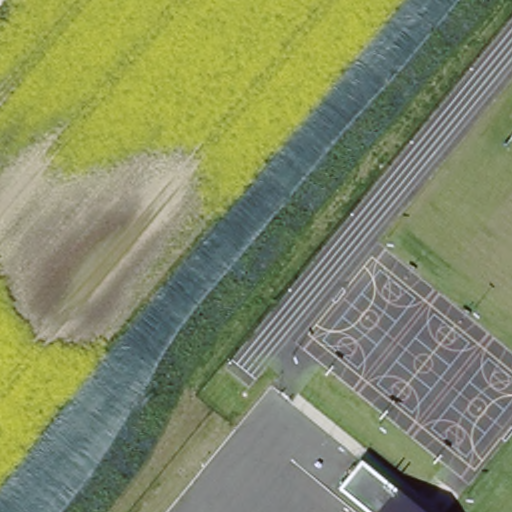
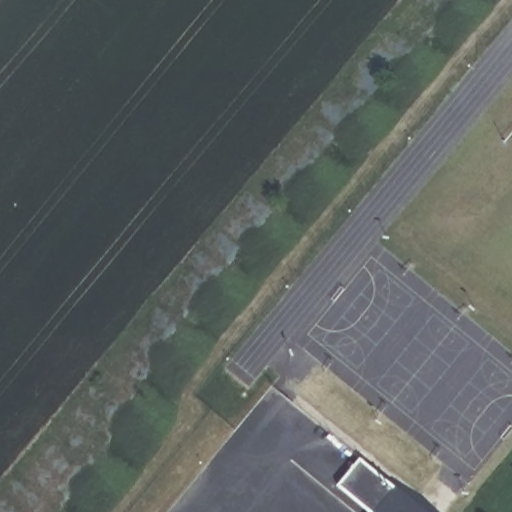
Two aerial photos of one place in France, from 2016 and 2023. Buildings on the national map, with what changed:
unchanged [(358,458),(395,487),(426,512),(370,512),(336,486),(358,458)]

